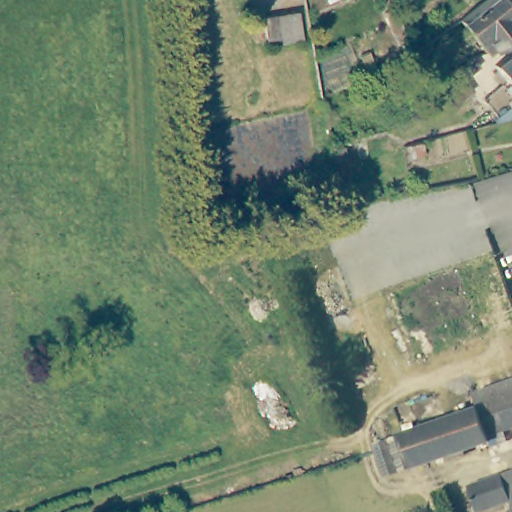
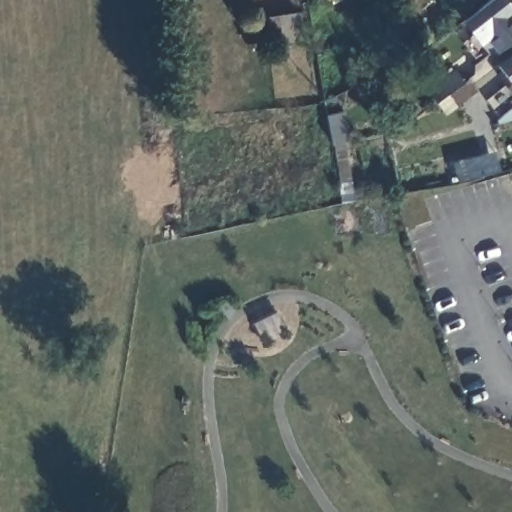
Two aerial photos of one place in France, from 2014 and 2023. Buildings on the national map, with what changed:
unchanged [(508,0),(512,5),(512,18),(512,33),(498,45),(487,48),(461,16),(481,0),(508,0)]
unchanged [(280,16),(295,15),(300,42),(284,45),(280,16)]
unchanged [(501,65),(512,56),(512,79),(501,65)]
unchanged [(445,79),(473,57),(481,67),(453,90),(445,79)]
unchanged [(511,89),(512,88),(512,90),(511,89)]
demolished [(480,405),(483,415),(512,405),(512,420),(487,428),(490,437),(415,465),(403,433),(480,405)]
demolished [(507,502),(478,512),(475,512),(466,487),(498,477),(512,472),(512,512),(510,512),(507,502)]

